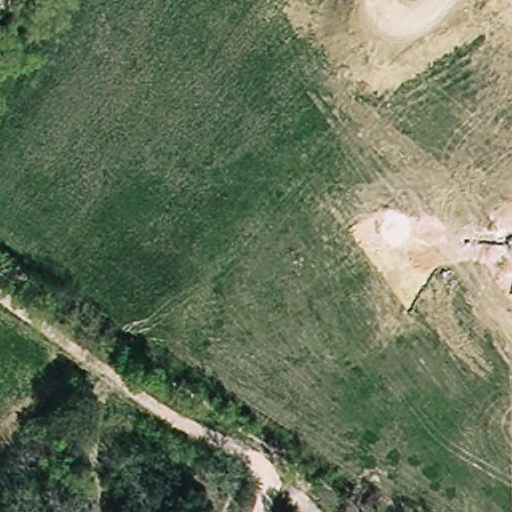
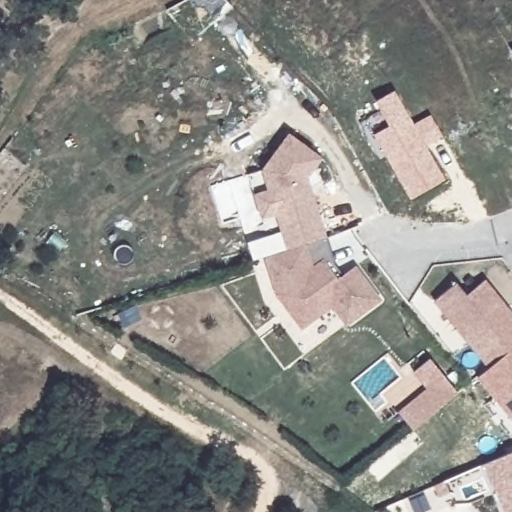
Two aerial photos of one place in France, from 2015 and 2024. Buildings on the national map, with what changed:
new [(389,126),(375,101),(394,90),(414,124),(430,114),(443,136),(426,145),(445,180),(411,199),(373,135),(389,126)]
new [(324,158),(314,170),(310,177),(328,237),(327,238),(285,250),(275,214),(261,220),(253,193),(268,190),(261,170),(289,132),(324,158)]
new [(276,295),(265,257),(327,238),(339,278),(358,266),(382,300),(346,325),(333,308),(302,330),(276,295)]
new [(486,279),(512,311),(512,420),(477,378),(488,369),(434,302),(457,283),(467,294),(486,279)]
new [(398,410),(426,388),(413,371),(430,358),(458,392),(413,429),(398,410)]
new [(486,465),(512,454),(512,512),(506,512),(495,486),(486,465)]
new [(450,493),(440,498),(435,487),(446,482),(450,493)]
new [(432,510),(428,512),(414,512),(411,502),(426,496),(432,510)]

